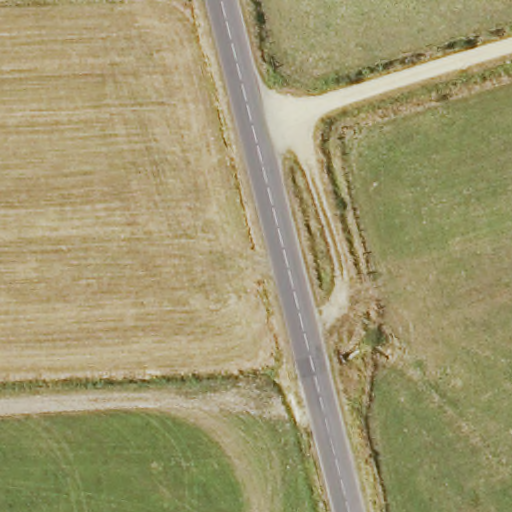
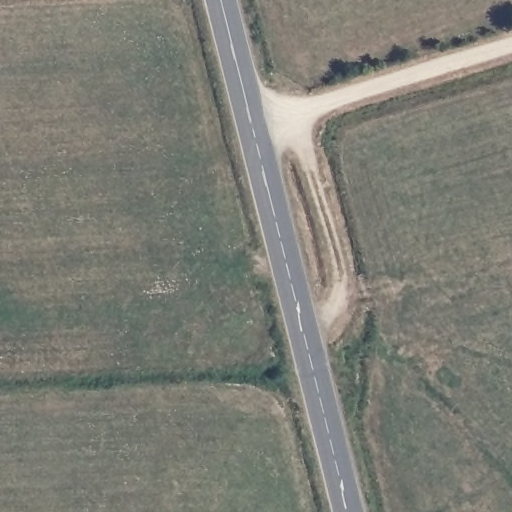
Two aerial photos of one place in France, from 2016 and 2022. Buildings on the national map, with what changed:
[]

